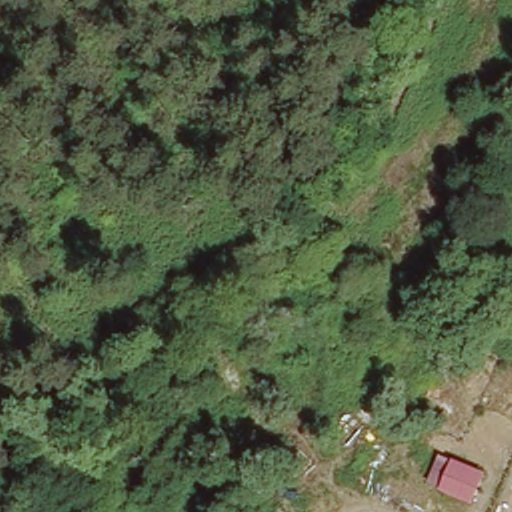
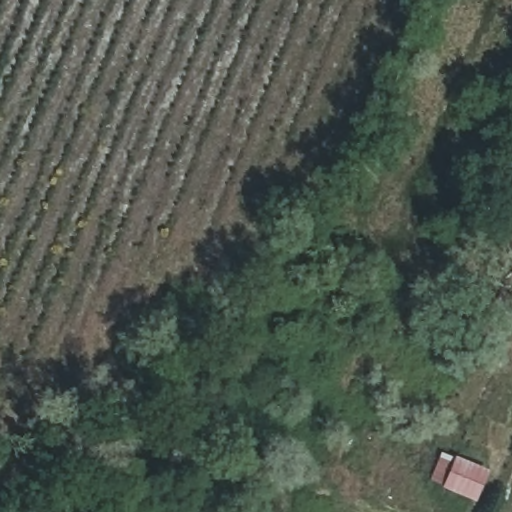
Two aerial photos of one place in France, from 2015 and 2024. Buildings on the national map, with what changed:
unchanged [(442,484),(457,459),(484,476),(470,499),(442,484)]

